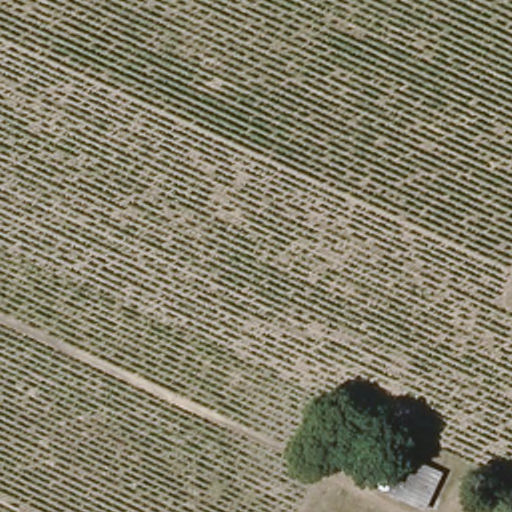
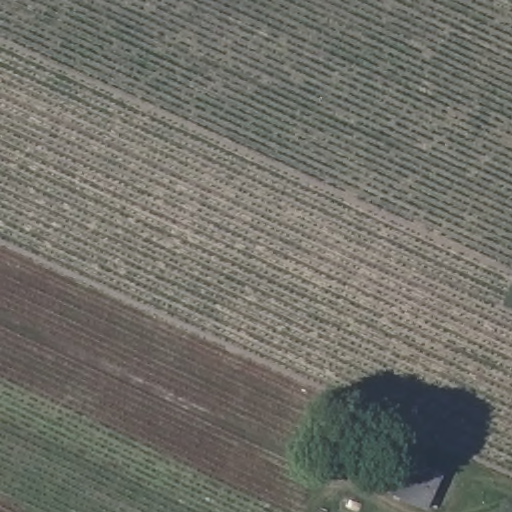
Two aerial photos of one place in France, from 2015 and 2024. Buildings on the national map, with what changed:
unchanged [(426,505),(396,491),(411,461),(441,475),(426,505)]

